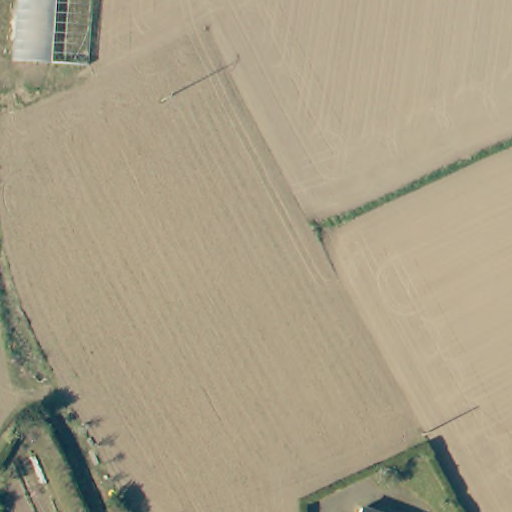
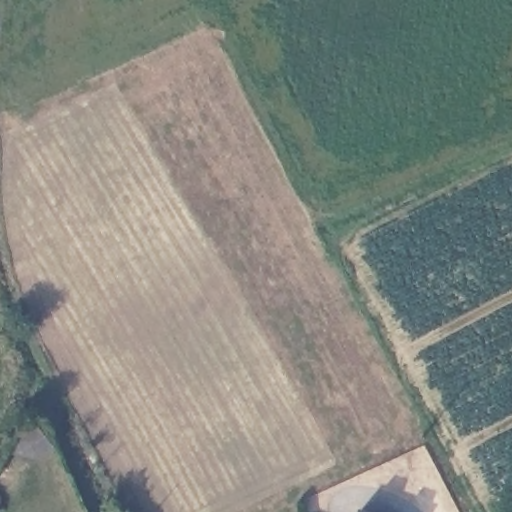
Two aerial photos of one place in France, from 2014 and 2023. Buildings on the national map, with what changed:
demolished [(90,0),(83,69),(3,63),(9,0),(90,0)]
unchanged [(360,510),(364,512),(359,512),(360,510)]

